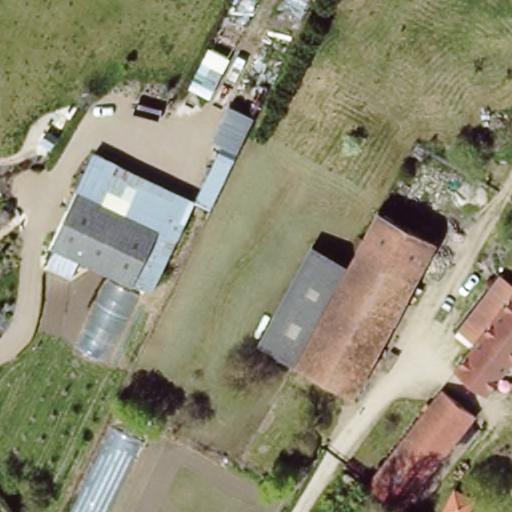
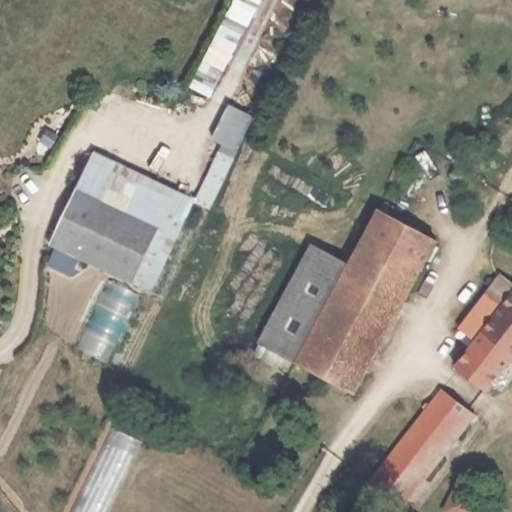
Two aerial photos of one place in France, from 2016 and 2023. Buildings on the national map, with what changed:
unchanged [(92,146),(188,198),(152,290),(135,283),(47,244),(92,146)]
unchanged [(380,211),(436,242),(353,393),(297,361),(380,211)]
unchanged [(297,361),(258,342),(310,241),(352,263),(297,361)]
unchanged [(458,325),(500,271),(512,279),(512,289),(473,337),(458,325)]
unchanged [(512,289),(512,358),(488,392),(455,361),(512,289)]
unchanged [(368,484),(441,392),(473,416),(400,511),(368,484)]

